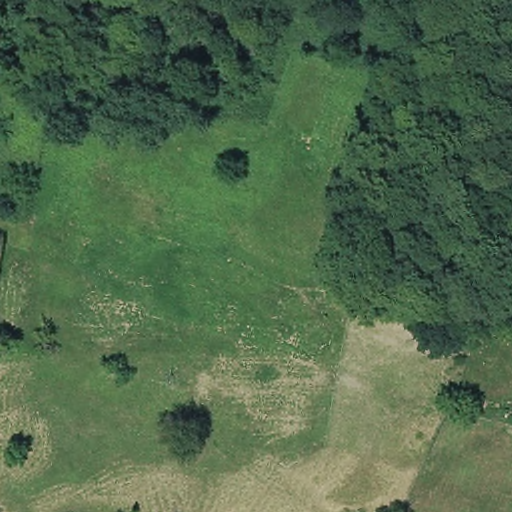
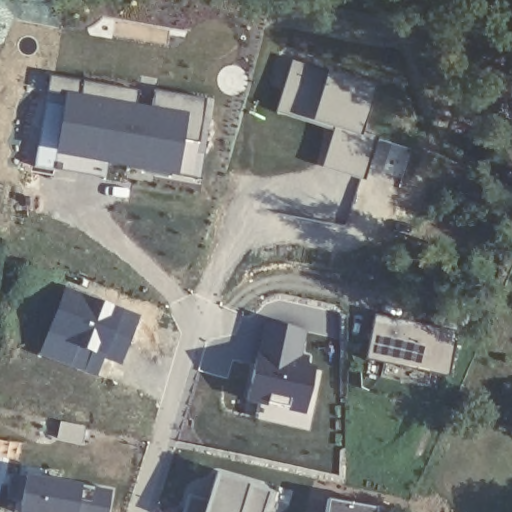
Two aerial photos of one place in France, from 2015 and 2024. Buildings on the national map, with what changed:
new [(376,85),(362,132),(377,137),(362,179),(321,166),(332,129),(277,111),(293,59),(376,85)]
new [(155,90),(205,99),(197,141),(182,139),(177,175),(55,154),(53,169),(35,165),(50,75),(137,90),(135,101),(153,105),(155,90)]
new [(121,365),(102,358),(97,376),(40,353),(63,285),(139,315),(121,365)]
new [(456,332),(448,377),(365,358),(375,315),(456,332)]
new [(303,353),(312,355),(310,364),(316,365),(303,416),(245,401),(255,353),(260,354),(267,320),(308,331),(303,353)]
new [(20,501),(7,499),(10,472),(25,475),(25,470),(109,485),(107,512),(17,512),(20,501)]
new [(216,473),(270,490),(263,512),(182,512),(187,493),(206,499),(216,473)]
new [(377,507),(377,512),(326,512),(328,499),(377,507)]

